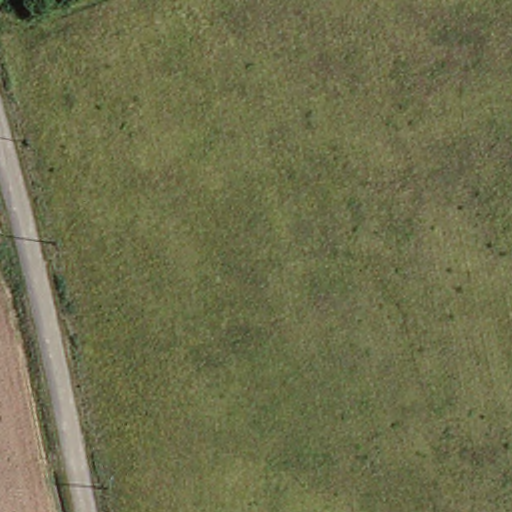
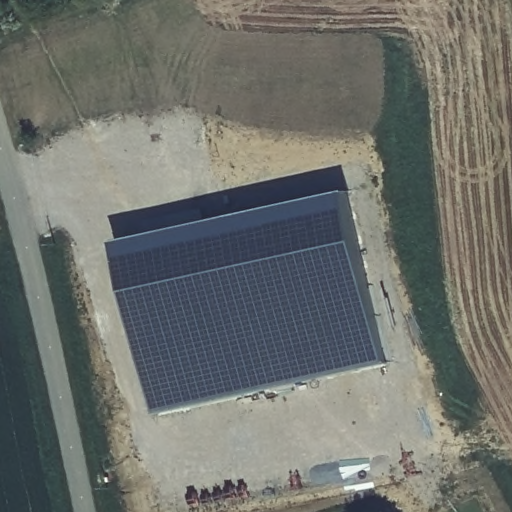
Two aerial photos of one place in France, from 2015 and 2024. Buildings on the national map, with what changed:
new [(389,365),(154,413),(116,240),(354,191),(389,365)]

